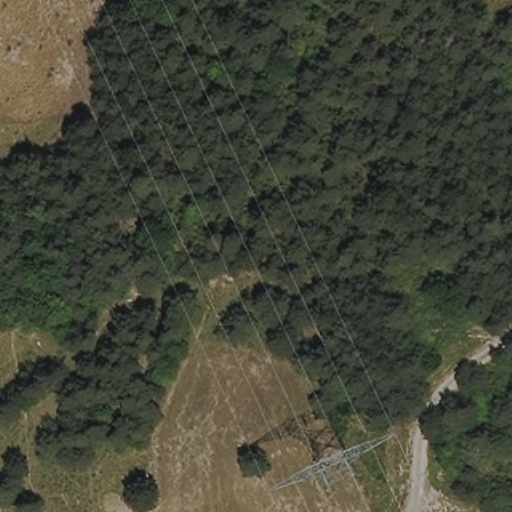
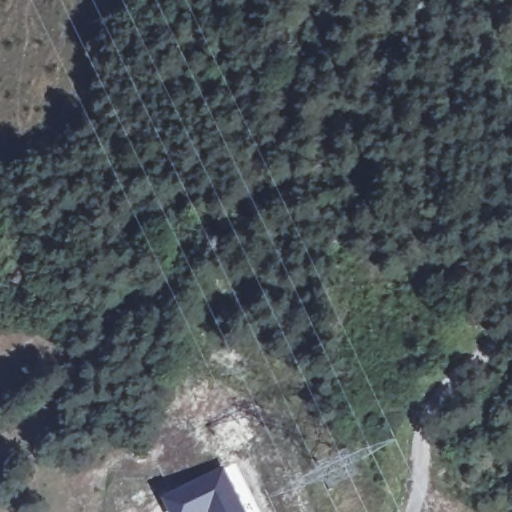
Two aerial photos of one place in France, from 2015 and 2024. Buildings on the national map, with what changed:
demolished [(142,511),(138,512),(119,512),(107,468),(130,461),(142,511)]
new [(249,512),(169,512),(160,495),(225,463),(249,512)]

